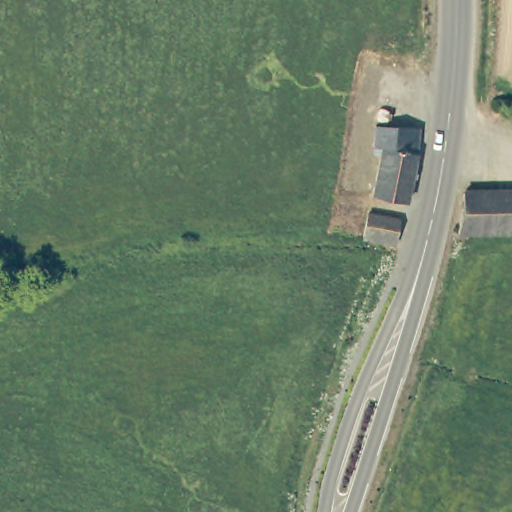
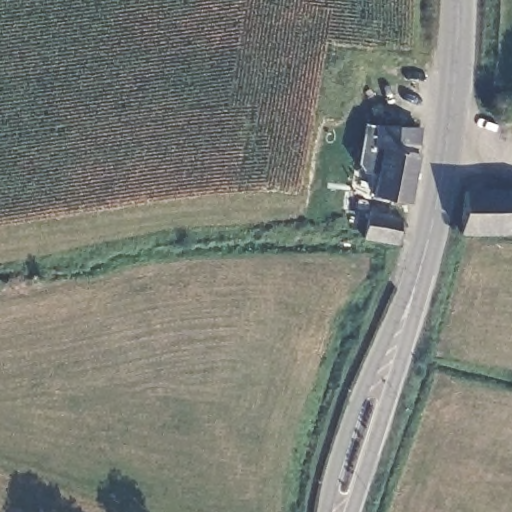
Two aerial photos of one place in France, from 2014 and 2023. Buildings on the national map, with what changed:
unchanged [(419,129),(417,154),(406,204),(373,197),(383,155),(376,153),(377,148),(374,148),(377,126),(419,129)]
unchanged [(489,233),(460,235),(465,191),(492,192),(489,233)]
unchanged [(492,192),(512,192),(512,233),(489,233),(492,192)]
unchanged [(400,220),(396,244),(364,238),(369,213),(400,220)]

